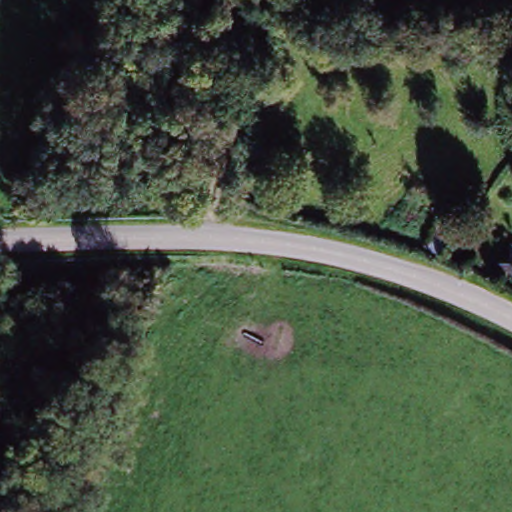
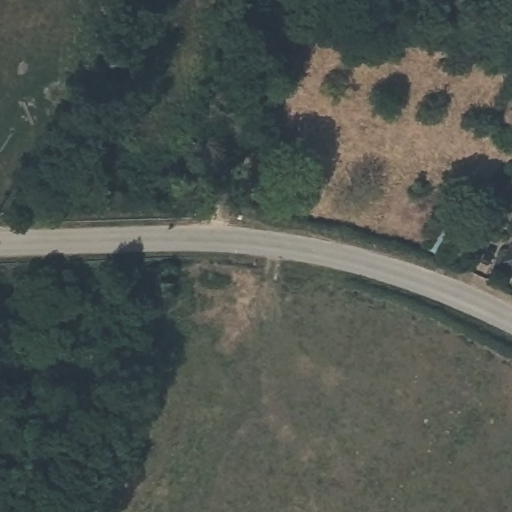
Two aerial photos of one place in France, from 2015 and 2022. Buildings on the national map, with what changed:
unchanged [(512,262),(512,286),(487,269),(498,252),(512,262)]

